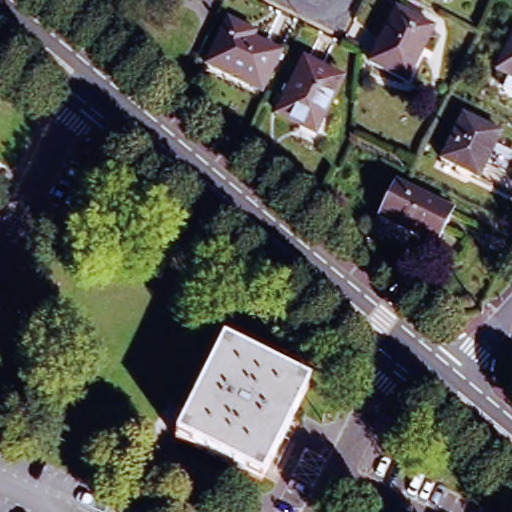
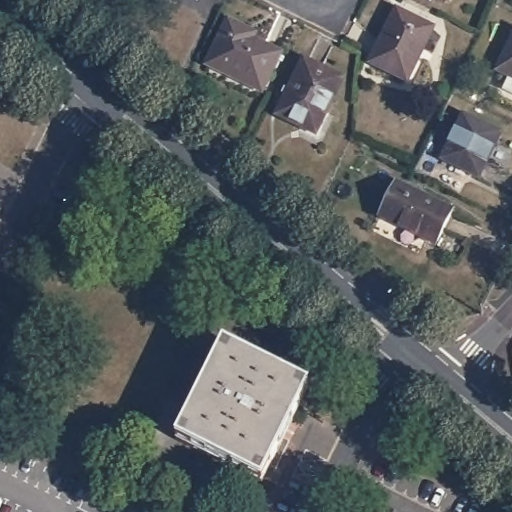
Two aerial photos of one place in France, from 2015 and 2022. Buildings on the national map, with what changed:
unchanged [(448,0),(445,6),(433,0),(448,0)]
unchanged [(422,50),(420,49),(404,80),(369,64),(395,10),(433,28),(422,50)]
unchanged [(257,92),(202,65),(223,21),(240,30),(250,34),(247,39),(275,54),(257,92)]
unchanged [(504,75),(495,71),(512,37),(512,98),(497,90),(504,75)]
unchanged [(315,134),(277,115),(304,61),(341,79),(315,134)]
unchanged [(479,179),(441,160),(462,115),(500,134),(479,179)]
unchanged [(431,245),(374,217),(390,182),(448,210),(431,245)]
unchanged [(260,481),(177,439),(223,345),(307,387),(260,481)]

